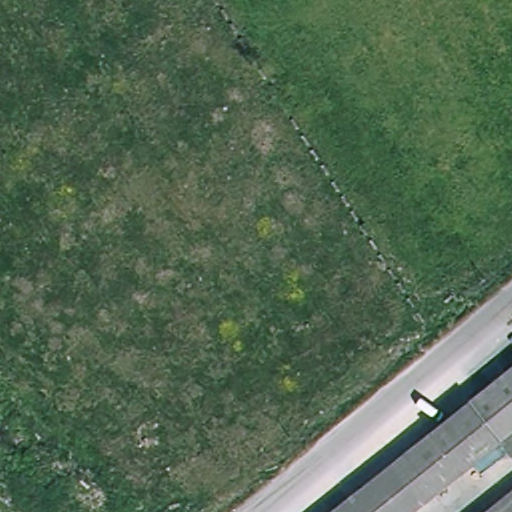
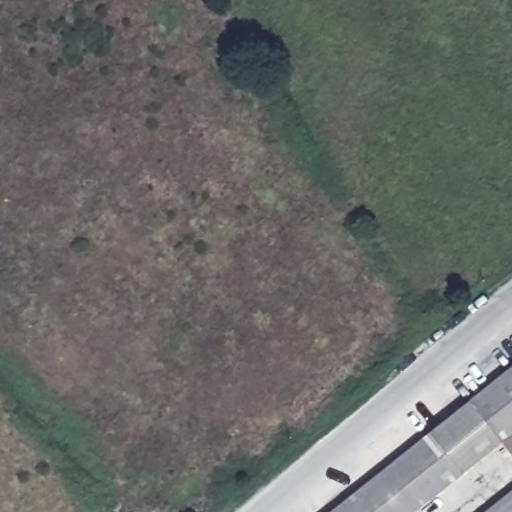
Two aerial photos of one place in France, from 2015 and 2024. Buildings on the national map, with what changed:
unchanged [(413,512),(332,512),(512,367),(512,433),(500,442),(413,512)]
unchanged [(512,433),(512,457),(500,442),(512,433)]
unchanged [(512,497),(512,512),(493,512),(512,497)]

